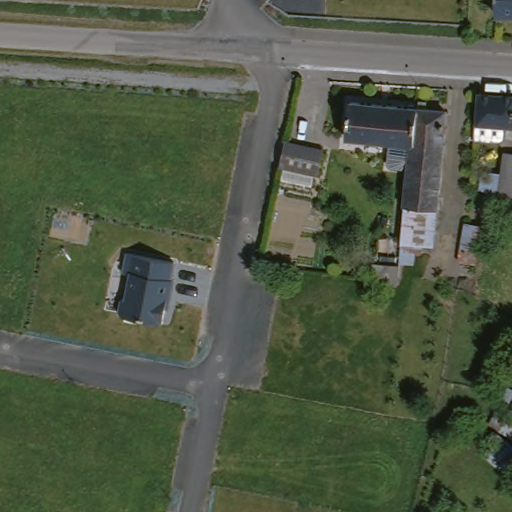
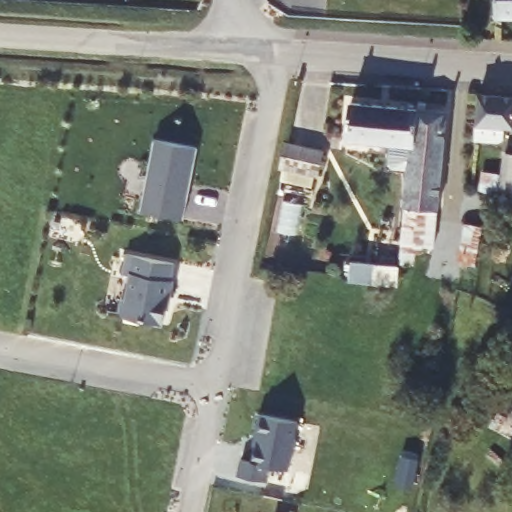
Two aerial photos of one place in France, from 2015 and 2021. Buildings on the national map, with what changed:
unchanged [(487,17),(487,0),(512,0),(512,17),(487,17)]
unchanged [(471,124),(472,124),(474,92),(511,94),(509,126),(500,126),(499,141),(470,139),(471,124)]
unchanged [(402,148),(338,141),(341,105),(406,111),(403,148),(402,148)]
unchanged [(413,112),(436,115),(425,231),(424,231),(423,246),(392,242),(401,151),(402,148),(403,148),(406,111),(413,112)]
new [(198,146),(184,219),(141,211),(155,138),(198,146)]
unchanged [(289,187),(280,185),(277,185),(279,172),(274,172),(279,146),(287,148),(296,150),(318,155),(313,179),(309,179),(306,191),(289,187)]
unchanged [(498,190),(501,151),(512,152),(512,192),(498,190)]
unchanged [(471,268),(463,268),(460,286),(439,282),(443,262),(452,264),(458,226),(476,228),(471,268)]
unchanged [(136,279),(128,276),(134,250),(182,258),(170,323),(129,315),(136,279)]
unchanged [(388,274),(387,286),(363,282),(366,264),(389,266),(388,274)]
new [(290,469),(271,466),(268,481),(237,475),(241,457),(252,460),(256,445),(253,444),(260,412),(298,420),(290,469)]

